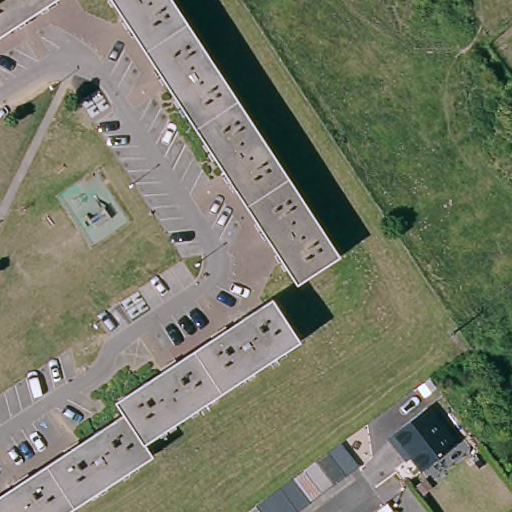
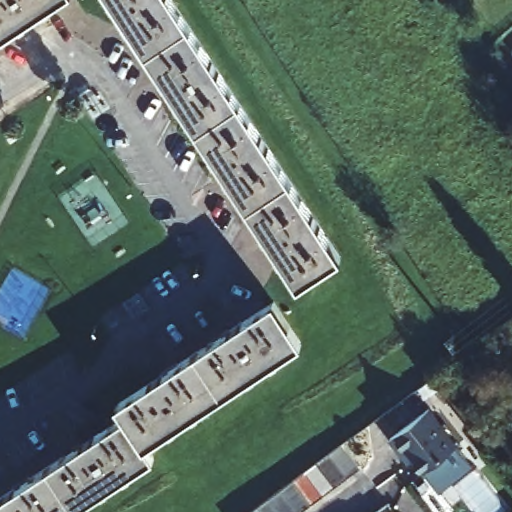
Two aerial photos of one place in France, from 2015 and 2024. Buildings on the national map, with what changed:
unchanged [(0,25),(0,0),(37,0),(0,25)]
unchanged [(337,249),(295,275),(116,0),(175,0),(337,249)]
unchanged [(115,398),(272,296),(297,337),(141,438),(123,411),(115,398)]
unchanged [(455,445),(423,470),(405,447),(401,451),(390,435),(427,407),(455,445)]
unchanged [(149,452),(56,512),(0,512),(0,490),(123,411),(141,438),(149,452)]
unchanged [(262,492),(274,483),(285,474),(298,465),(310,456),(323,447),(337,437),(356,463),(342,473),(329,483),(317,491),(305,501),(294,509),(290,512),(235,512),(237,510),(250,501),(262,492)]

